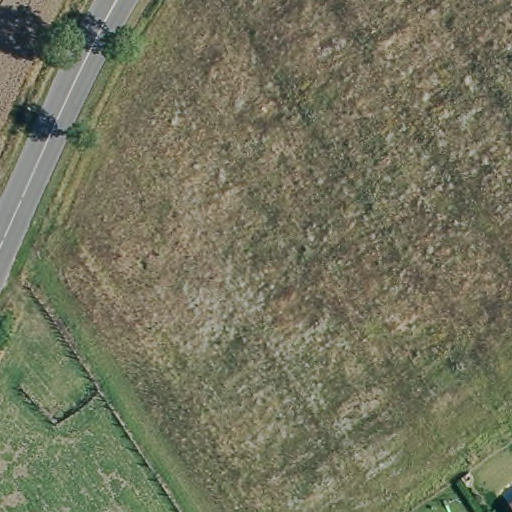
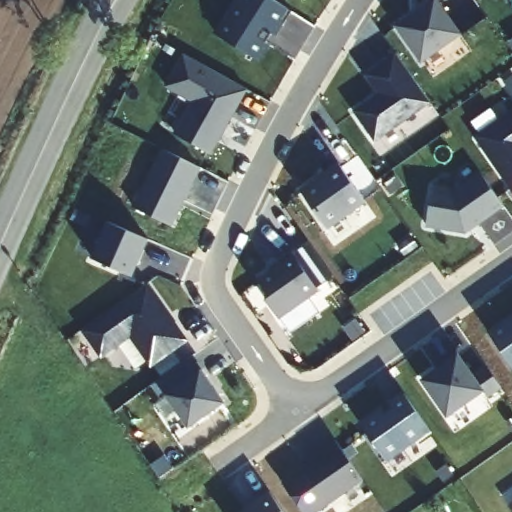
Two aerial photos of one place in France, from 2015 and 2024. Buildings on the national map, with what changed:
new [(282,29),(281,28),(273,41),(270,40),(254,65),(216,41),(241,0),(263,0),(291,17),(282,29)]
new [(433,4),(459,40),(419,67),(394,31),(433,4)]
new [(429,106),(374,145),(354,116),(375,101),(377,104),(382,101),(366,79),(395,59),(429,106)]
new [(182,127),(180,126),(191,106),(164,92),(182,60),(245,95),(220,140),(218,139),(213,145),(216,146),(209,159),(174,141),(182,127)]
new [(512,195),(475,143),(512,116),(512,195)]
new [(203,178),(179,230),(141,216),(166,160),(203,178)]
new [(363,206),(325,233),(300,198),(324,181),(322,178),(336,168),(363,206)]
new [(503,211),(466,238),(427,232),(433,192),(456,196),(480,179),(503,211)]
new [(115,226),(152,241),(128,293),(90,280),(115,226)]
new [(317,298),(277,326),(264,307),(266,300),(257,288),(279,272),(278,269),(291,260),(317,298)]
new [(145,291),(184,347),(149,372),(128,343),(99,363),(81,337),(145,291)]
new [(512,371),(489,338),(512,321),(512,371)]
new [(501,392),(487,403),(482,396),(447,421),(422,385),(457,360),(472,380),(485,370),(501,392)]
new [(200,378),(223,410),(188,434),(166,403),(200,378)]
new [(429,435),(384,466),(359,430),(404,399),(429,435)]
new [(365,490),(333,512),(298,512),(283,491),(326,461),(323,457),(335,447),(365,490)]
new [(323,457),(326,461),(306,475),(302,471),(323,457)]
new [(279,512),(257,512),(256,509),(269,499),(279,512)]
unchanged [(512,505),(512,508),(511,506),(512,505)]

